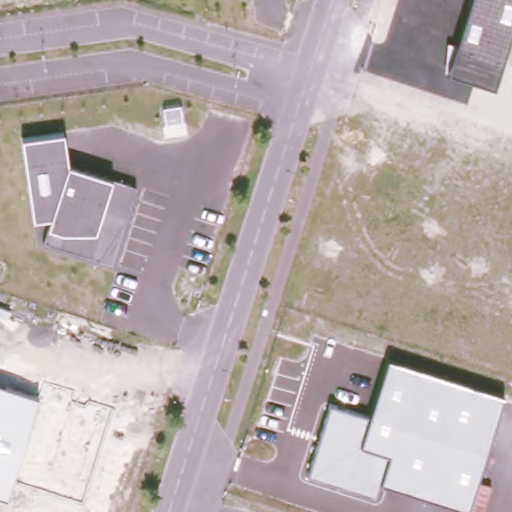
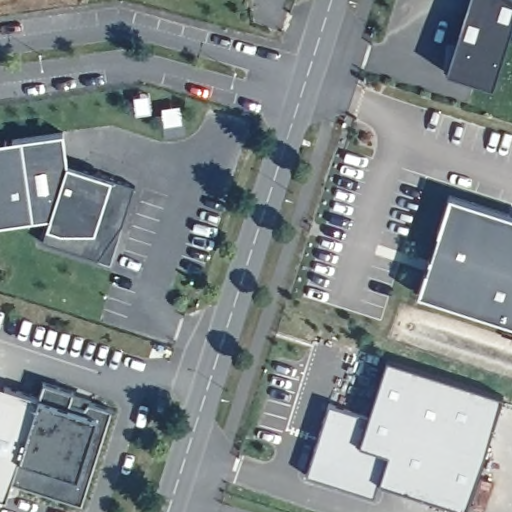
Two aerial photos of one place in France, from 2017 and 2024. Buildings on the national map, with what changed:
unchanged [(446,40),(456,39),(468,0),(512,0),(512,27),(493,85),(446,69),(445,71),(446,40)]
unchanged [(107,184),(131,192),(106,269),(37,247),(44,224),(0,228),(0,145),(58,139),(63,170),(107,184)]
new [(512,210),(512,315),(414,283),(446,189),(512,210)]
unchanged [(367,418),(385,362),(501,398),(465,511),(378,485),(373,498),(306,476),(329,409),(367,418)]
new [(37,396),(45,397),(49,380),(80,389),(80,402),(95,407),(95,399),(120,407),(90,500),(10,474),(37,396)]
unchanged [(10,474),(5,495),(0,493),(0,383),(37,396),(10,474)]

